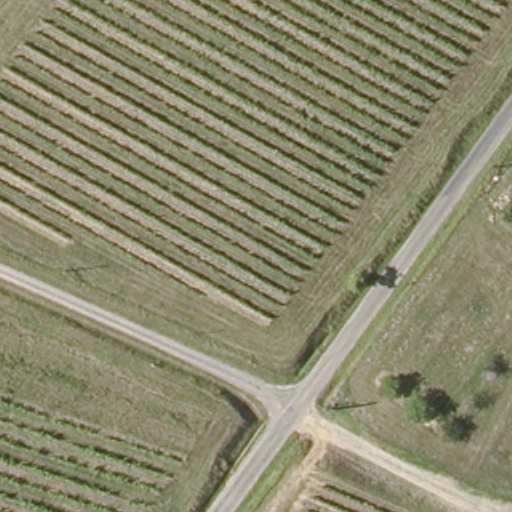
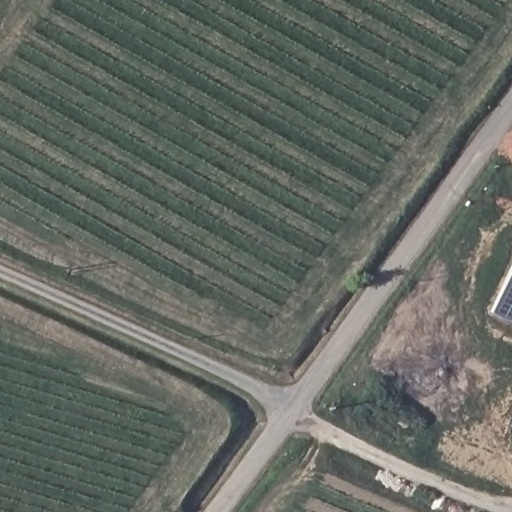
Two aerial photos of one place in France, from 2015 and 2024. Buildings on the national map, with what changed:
new [(512,260),(512,323),(489,312),(512,260)]

